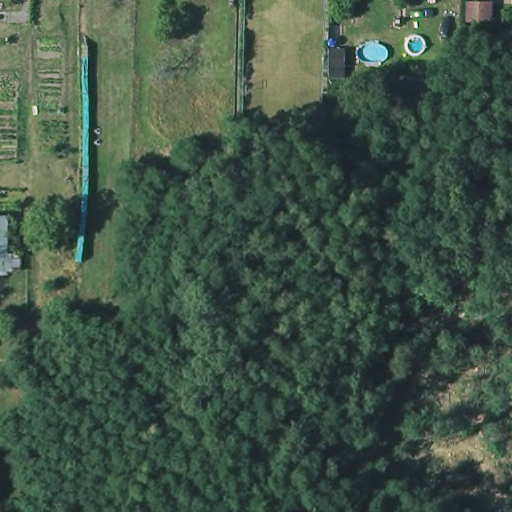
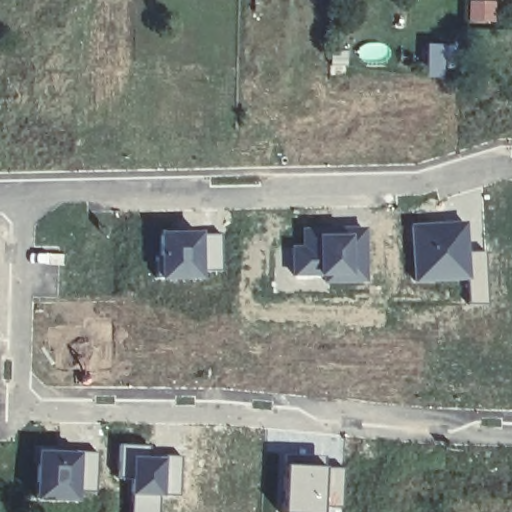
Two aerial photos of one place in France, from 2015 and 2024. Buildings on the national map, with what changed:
new [(497,2),(497,23),(469,23),(470,3),(497,2)]
unchanged [(26,259),(26,276),(0,276),(0,222),(14,222),(14,259),(26,259)]
new [(464,224),(466,253),(484,253),(488,304),(469,305),(467,280),(413,282),(410,224),(464,224)]
new [(301,246),(301,228),(364,229),(364,285),(324,285),(325,277),(290,277),(289,246),(301,246)]
new [(198,233),(223,234),(223,270),(198,271),(198,280),(158,279),(158,233),(198,233)]
new [(154,458),(182,458),(181,498),(160,497),(161,504),(158,508),(157,512),(130,512),(130,502),(127,497),(118,497),(119,446),(154,447),(154,458)]
new [(76,453),(96,453),(95,493),(74,493),(75,503),(34,503),(33,453),(76,453)]
new [(323,469),(344,470),(344,508),(321,509),(320,512),(280,512),(282,456),(323,458),(323,469)]

